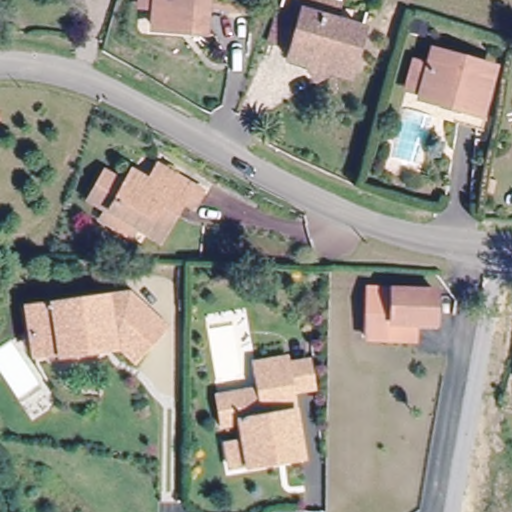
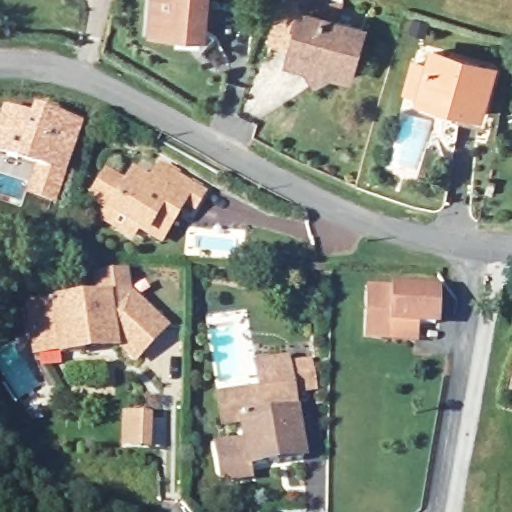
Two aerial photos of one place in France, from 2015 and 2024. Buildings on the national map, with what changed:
unchanged [(157,25),(160,4),(144,2),(144,0),(209,0),(207,29),(157,25)]
unchanged [(377,46),(363,92),(345,86),(338,76),(306,66),(306,65),(285,58),(301,0),(303,0),(356,16),(350,38),(377,46)]
unchanged [(418,92),(419,88),(405,84),(412,57),(427,61),(432,46),(493,64),(480,111),(418,92)]
new [(28,114),(32,105),(84,124),(55,206),(25,194),(34,168),(0,155),(0,113),(2,106),(28,114)]
unchanged [(90,201),(105,173),(125,185),(132,173),(149,183),(158,166),(201,192),(192,209),(181,202),(175,213),(159,241),(134,226),(110,213),(90,201)]
unchanged [(392,336),(367,335),(370,307),(371,285),(438,288),(437,320),(417,320),(416,337),(392,336)]
unchanged [(81,356),(56,359),(56,356),(31,359),(28,337),(25,311),(128,297),(163,331),(131,364),(112,346),(112,351),(81,356)]
unchanged [(254,364),(285,359),(285,366),(305,363),(310,390),(290,393),(300,459),(245,468),(244,465),(226,467),(223,445),(240,442),(237,423),(220,425),(215,397),(233,394),(257,390),(254,364)]

